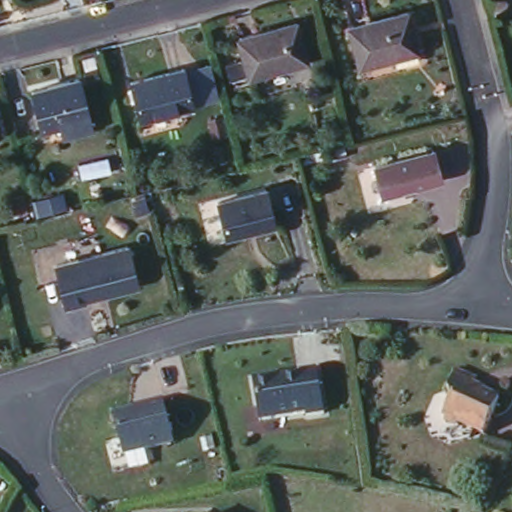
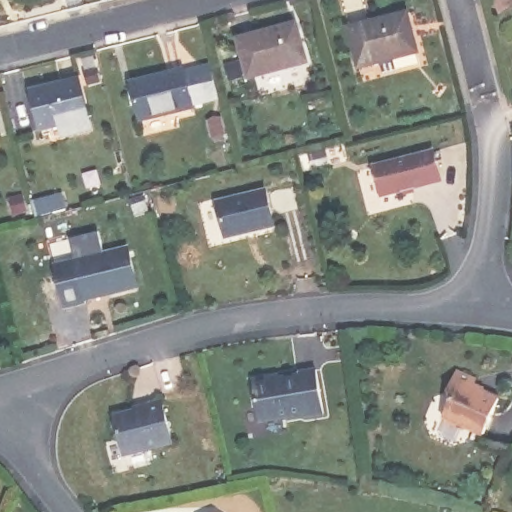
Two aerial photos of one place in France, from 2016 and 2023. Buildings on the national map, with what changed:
unchanged [(344,28),(402,14),(412,52),(354,67),(344,28)]
unchanged [(238,40),(295,24),(306,62),(248,77),(238,40)]
unchanged [(130,83),(208,63),(218,100),(140,121),(130,83)]
unchanged [(81,72),(89,70),(92,82),(83,84),(81,72)]
unchanged [(63,135),(56,132),(54,125),(36,130),(26,91),(74,80),(83,118),(86,130),(63,135)]
unchanged [(209,121),(220,119),(223,134),(212,137),(209,121)]
unchanged [(433,153),(440,182),(411,190),(381,197),(373,168),(433,153)]
unchanged [(265,190),(274,226),(225,238),(216,201),(265,190)]
unchanged [(34,204),(44,201),(47,215),(37,217),(34,204)]
unchanged [(22,206),(30,205),(33,219),(26,220),(22,206)]
unchanged [(129,250),(138,287),(86,300),(86,302),(66,307),(56,268),(129,250)]
unchanged [(272,380),(273,387),(299,382),(298,375),(315,372),(322,416),(303,419),(302,411),(257,419),(251,382),(272,380)]
unchanged [(472,382),(469,389),(495,400),(478,437),(456,427),(451,429),(440,424),(438,418),(446,401),(443,393),(451,373),(472,382)]
unchanged [(146,411),(145,409),(161,404),(173,445),(140,454),(123,459),(119,442),(112,420),(146,411)]

